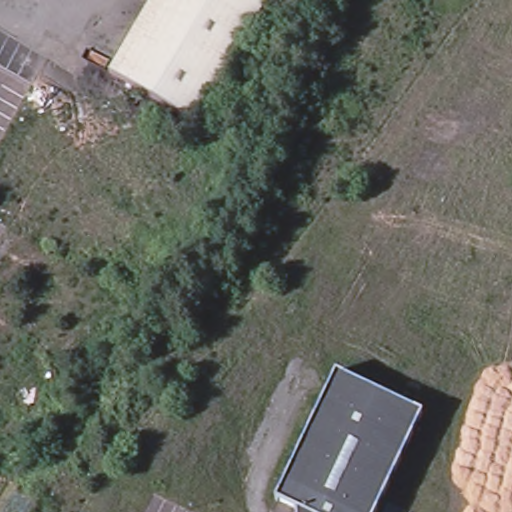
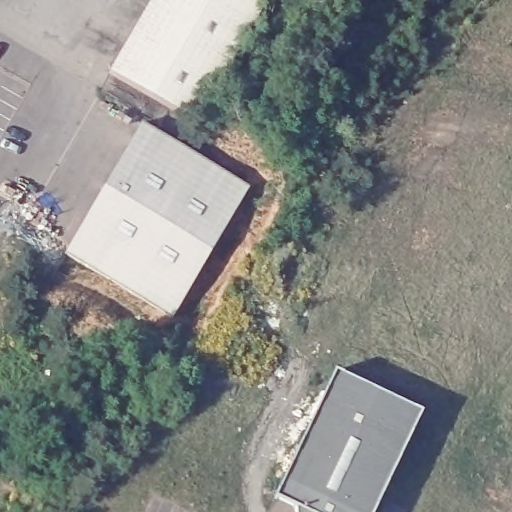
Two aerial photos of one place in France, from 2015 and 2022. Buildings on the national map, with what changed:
unchanged [(158,0),(273,0),(200,125),(115,74),(158,0)]
new [(142,131),(250,192),(173,321),(65,258),(142,131)]
unchanged [(337,365),(424,406),(373,512),(318,512),(297,502),(275,492),(337,365)]
unchanged [(297,502),(318,512),(298,512),(297,502)]

